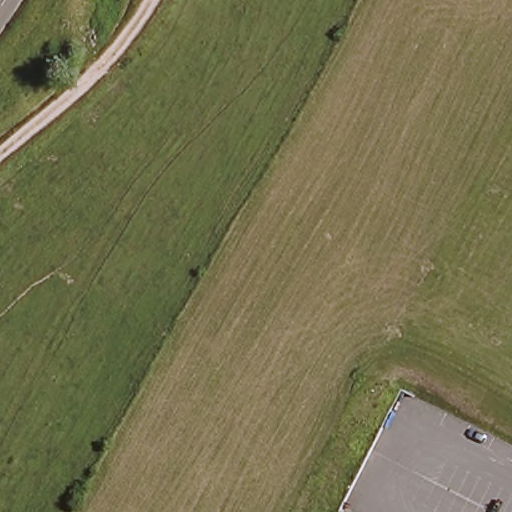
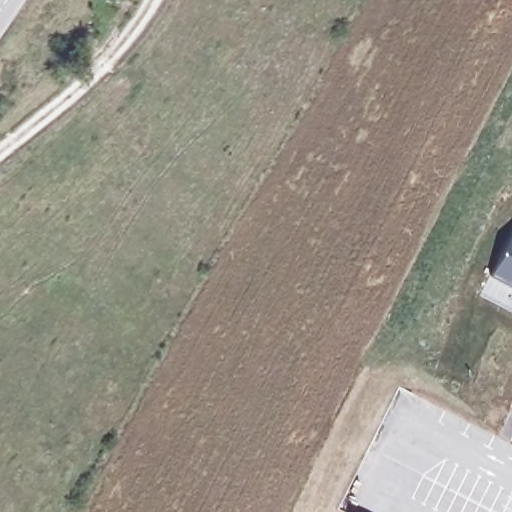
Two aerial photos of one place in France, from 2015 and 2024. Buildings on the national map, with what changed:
new [(512,232),(512,288),(489,276),(512,232)]

